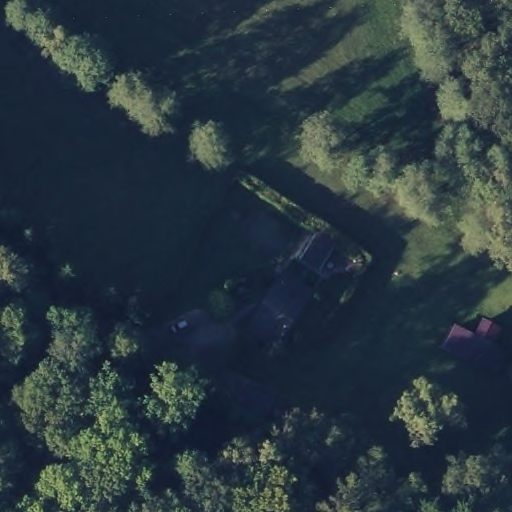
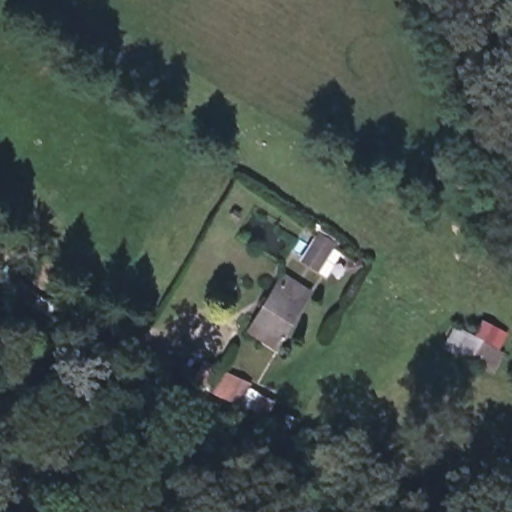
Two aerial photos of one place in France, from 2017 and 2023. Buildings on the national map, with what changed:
unchanged [(337,276),(307,257),(318,241),(347,260),(337,276)]
unchanged [(282,336),(255,320),(287,271),(314,288),(282,336)]
unchanged [(462,355),(470,338),(492,352),(485,368),(462,355)]

